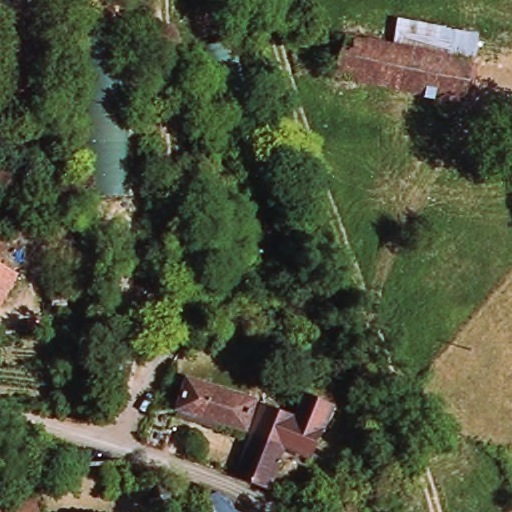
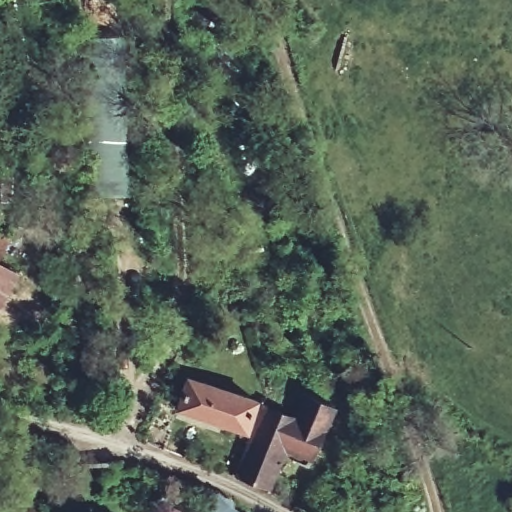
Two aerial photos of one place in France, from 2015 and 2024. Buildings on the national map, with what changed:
demolished [(391,42),(397,17),(479,35),(473,61),(391,42)]
unchanged [(130,194),(83,194),(83,32),(129,31),(130,194)]
demolished [(465,104),(337,76),(346,32),(391,42),(473,61),(465,104)]
unchanged [(228,201),(198,43),(244,34),(275,193),(228,201)]
unchanged [(8,236),(0,250),(0,232),(8,236)]
unchanged [(0,299),(0,265),(15,274),(0,299)]
unchanged [(253,397),(245,426),(176,407),(187,378),(253,397)]
unchanged [(270,488),(236,475),(260,401),(292,412),(305,388),(336,402),(336,404),(335,407),(336,407),(309,465),(280,457),(270,488)]
unchanged [(158,481),(163,481),(168,483),(171,487),(174,495),(173,500),(170,505),(166,508),(162,509),(154,508),(152,507),(148,503),(146,500),(146,494),(147,490),(150,485),(153,483),(158,481)]
unchanged [(205,492),(212,495),(215,496),(218,495),(229,501),(236,511),(237,512),(209,512),(204,499),(205,492)]
unchanged [(0,512),(0,507),(33,500),(36,512),(0,512)]

